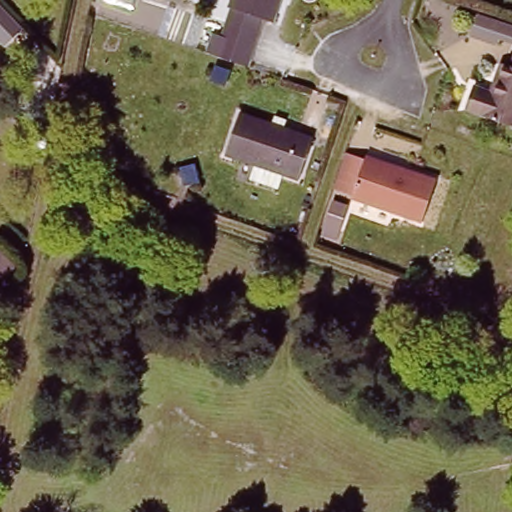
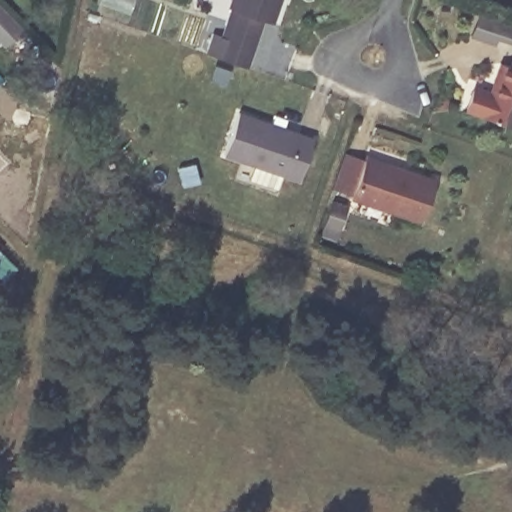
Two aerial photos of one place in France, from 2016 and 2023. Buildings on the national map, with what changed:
unchanged [(205,34),(217,39),(230,0),(276,0),(267,25),(258,22),(242,69),(198,55),(205,34)]
unchanged [(512,34),(512,61),(490,54),(498,30),(512,34)]
unchanged [(477,128),(484,107),(499,112),(511,77),(512,77),(512,140),(477,128)]
unchanged [(314,138),(299,181),(227,156),(241,113),(314,138)]
unchanged [(363,159),(364,155),(436,180),(422,221),(349,196),(350,194),(333,188),(345,153),(363,159)]

